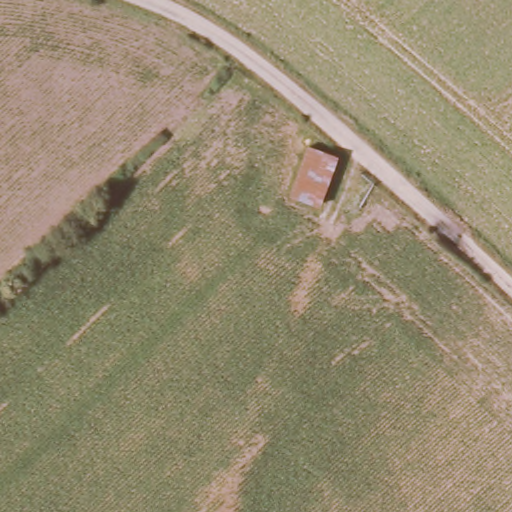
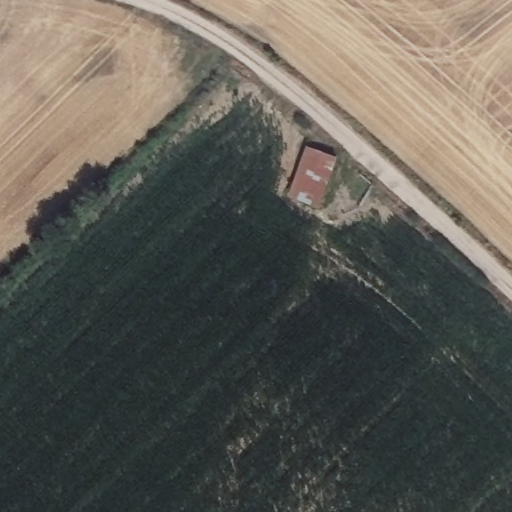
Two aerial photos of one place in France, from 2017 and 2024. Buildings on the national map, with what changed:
unchanged [(339,155),(320,209),(291,196),(309,145),(339,155)]

